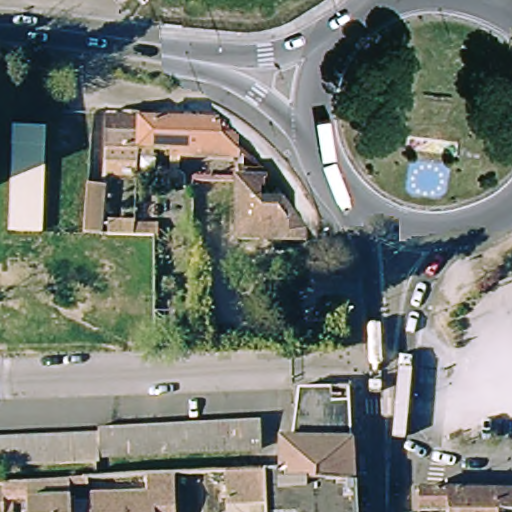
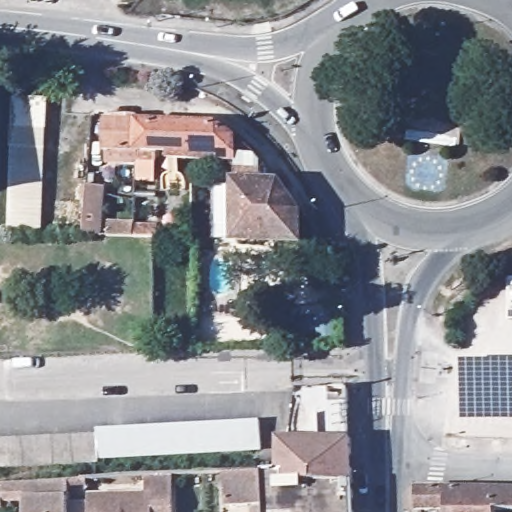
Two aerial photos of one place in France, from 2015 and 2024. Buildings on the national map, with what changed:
unchanged [(141,152),(110,152),(109,115),(142,116),(142,124),(141,152)]
unchanged [(244,186),(244,155),(141,152),(142,124),(222,125),(245,140),(253,149),(269,166),(268,186),(244,186)]
unchanged [(43,130),(38,235),(8,234),(12,127),(43,130)]
unchanged [(107,187),(108,222),(157,225),(155,239),(87,235),(89,185),(107,187)]
unchanged [(305,244),(245,241),(244,186),(268,186),(285,186),(306,215),(305,244)]
new [(512,359),(512,417),(465,416),(466,358),(512,359)]
unchanged [(231,505),(230,474),(267,471),(284,470),(284,442),(303,441),(302,390),(352,390),(357,483),(358,512),(268,512),(268,503),(231,505)]
unchanged [(265,453),(104,464),(104,468),(0,474),(0,445),(103,438),(102,435),(264,426),(265,453)]
unchanged [(93,496),(150,493),(152,480),(178,479),(179,501),(179,512),(93,512),(93,502),(93,496)]
unchanged [(74,502),(93,502),(93,512),(30,512),(29,485),(73,483),(74,502)]
unchanged [(499,512),(442,512),(442,510),(421,510),(421,489),(465,488),(493,488),(512,488),(512,511),(499,511),(499,512)]
unchanged [(0,512),(0,489),(7,489),(8,512),(0,512)]

